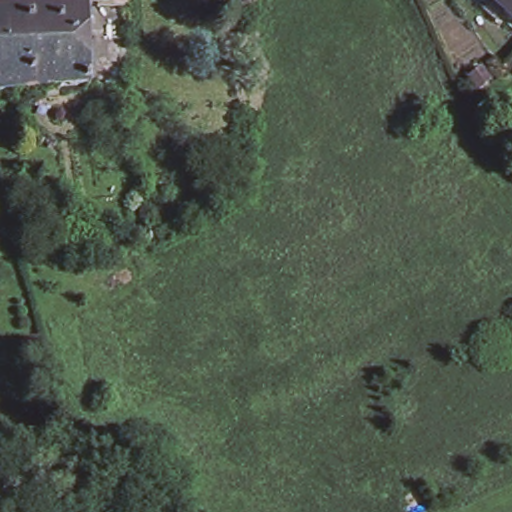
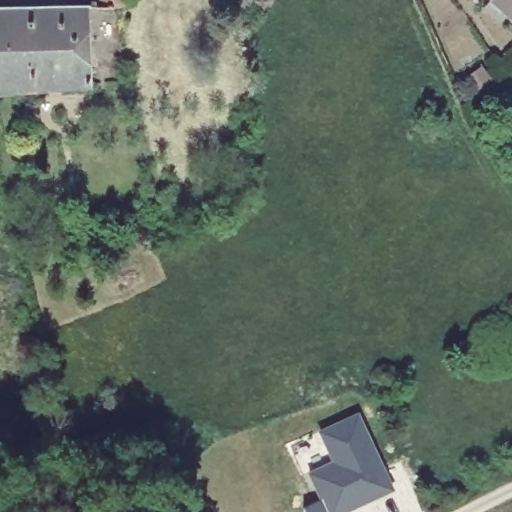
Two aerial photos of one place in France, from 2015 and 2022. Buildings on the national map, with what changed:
unchanged [(125,9),(103,12),(101,0),(124,0),(125,9)]
unchanged [(497,0),(512,0),(512,13),(497,0)]
unchanged [(53,3),(84,2),(87,83),(7,89),(1,4),(53,3)]
unchanged [(1,4),(7,89),(0,90),(0,4),(1,4)]
new [(333,460),(320,431),(358,413),(394,489),(344,512),(328,512),(309,471),(333,460)]

